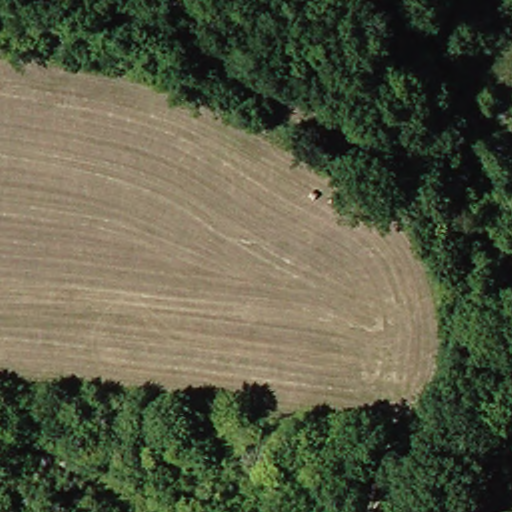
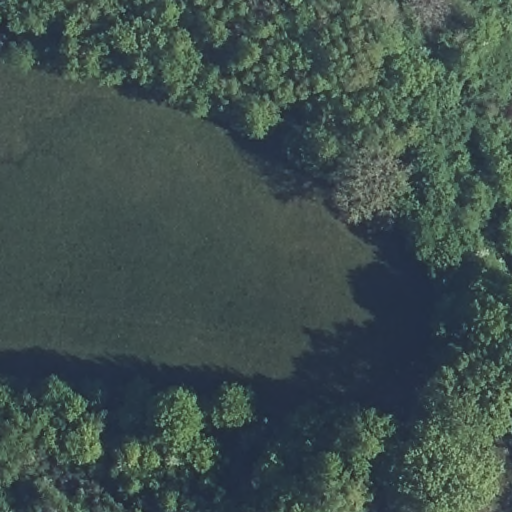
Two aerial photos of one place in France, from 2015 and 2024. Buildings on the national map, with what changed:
[]

